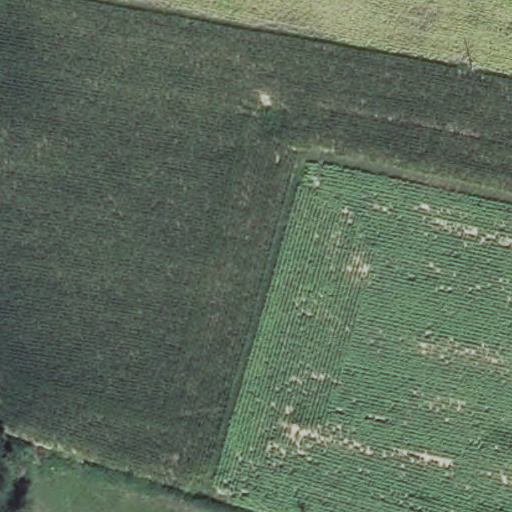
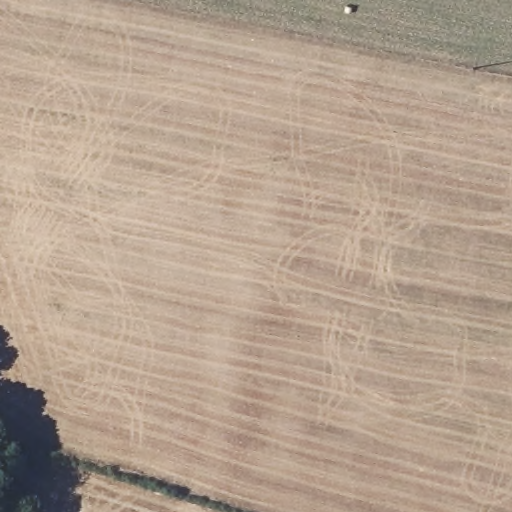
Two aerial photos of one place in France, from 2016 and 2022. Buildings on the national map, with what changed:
[]

